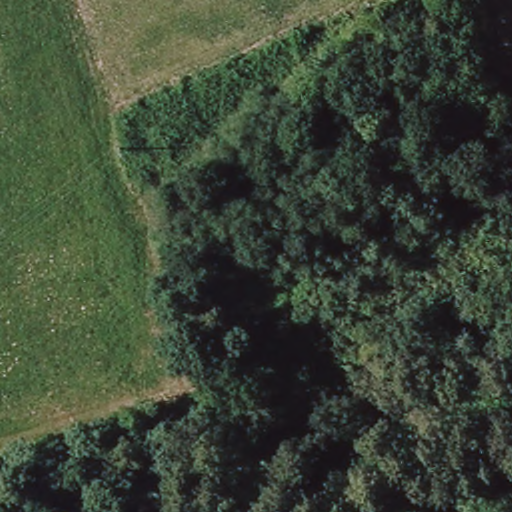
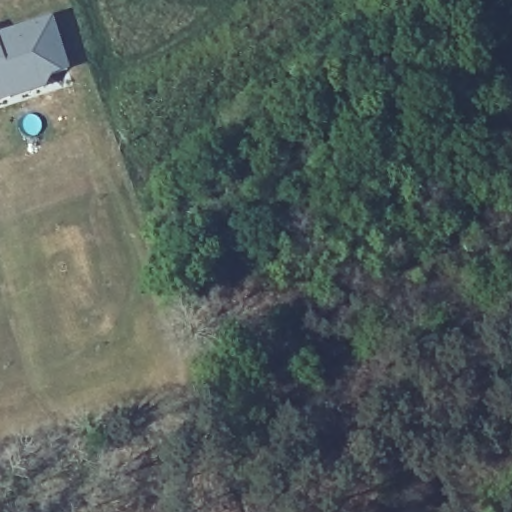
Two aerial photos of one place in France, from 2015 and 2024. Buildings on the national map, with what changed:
new [(69,71),(51,76),(44,89),(0,103),(0,33),(51,17),(69,71)]

